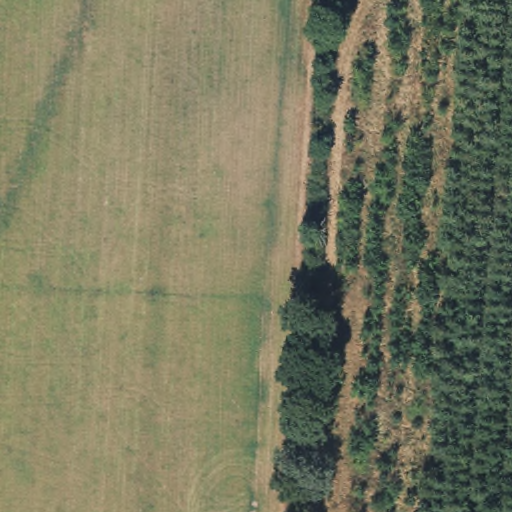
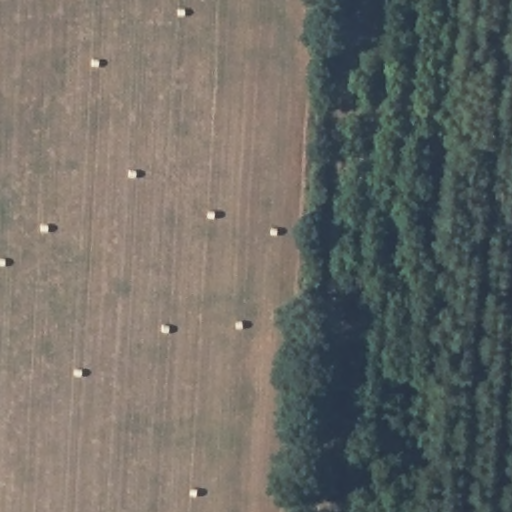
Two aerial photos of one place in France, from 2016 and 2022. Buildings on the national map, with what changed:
[]

